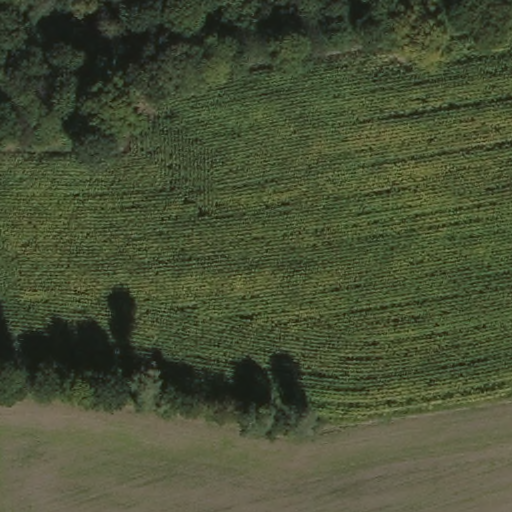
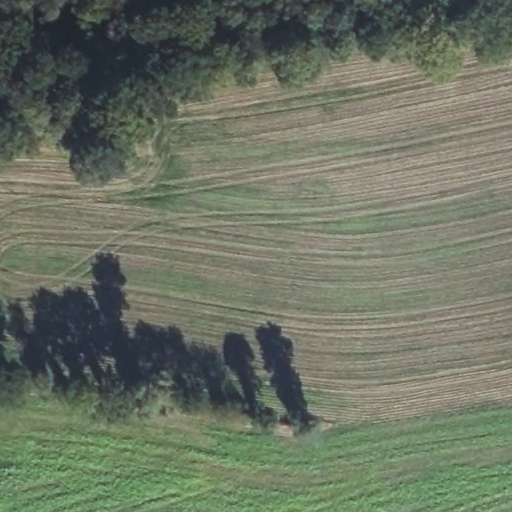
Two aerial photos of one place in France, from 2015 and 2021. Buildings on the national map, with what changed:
[]

